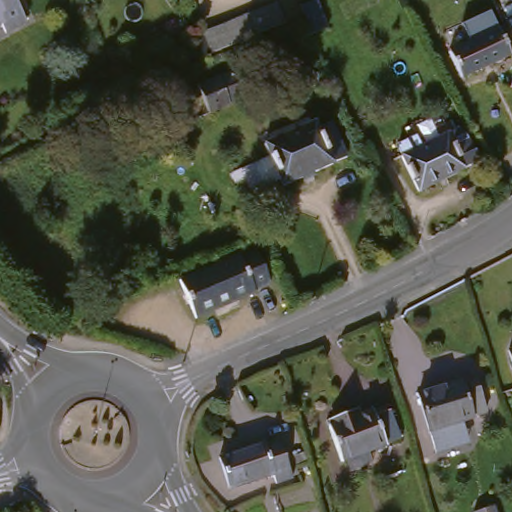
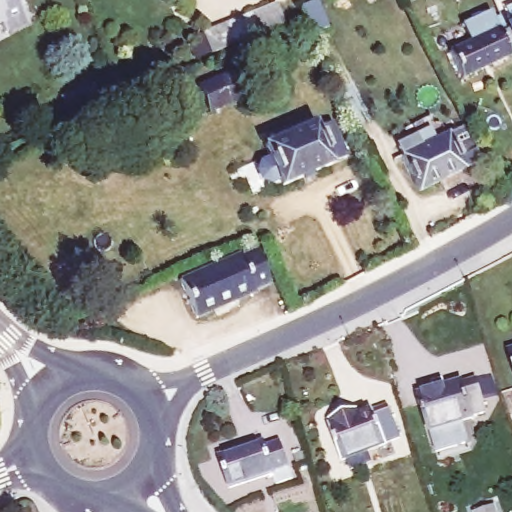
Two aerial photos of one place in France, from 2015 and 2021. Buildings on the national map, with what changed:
unchanged [(10,8),(19,28),(0,37),(0,0),(28,0),(10,8)]
unchanged [(203,35),(248,17),(277,5),(285,26),(263,35),(257,38),(212,56),(203,35)]
unchanged [(512,7),(512,11),(510,7),(512,7)]
unchanged [(499,26),(512,20),(512,54),(510,50),(505,51),(499,55),(504,66),(456,90),(440,59),(462,47),(454,31),(480,18),(488,35),(490,37),(497,35),(502,32),(499,26)]
unchanged [(200,101),(195,103),(191,95),(198,91),(197,89),(232,74),(237,85),(223,92),(230,108),(208,117),(200,101)]
unchanged [(264,136),(302,121),(306,128),(310,126),(313,132),(326,126),(341,160),(329,166),(330,168),(277,190),(258,149),(268,145),(264,136)]
unchanged [(393,166),(399,162),(396,157),(404,154),(407,159),(453,135),(471,171),(410,200),(393,166)]
unchanged [(237,262),(251,255),(268,286),(256,292),(257,295),(199,325),(178,289),(236,258),(237,262)]
unchanged [(512,377),(506,360),(512,359),(512,377)]
unchanged [(459,387),(460,390),(472,386),(482,416),(470,421),(471,424),(427,437),(416,400),(459,387)]
unchanged [(341,477),(337,466),(324,423),(344,417),(346,421),(368,415),(370,417),(384,412),(394,445),(380,450),(381,453),(358,460),(361,471),(341,477)]
unchanged [(258,498),(236,505),(232,491),(227,493),(217,461),(261,447),(263,452),(275,450),(284,475),(254,485),(258,498)]
unchanged [(484,512),(492,509),(493,512),(484,512)]

